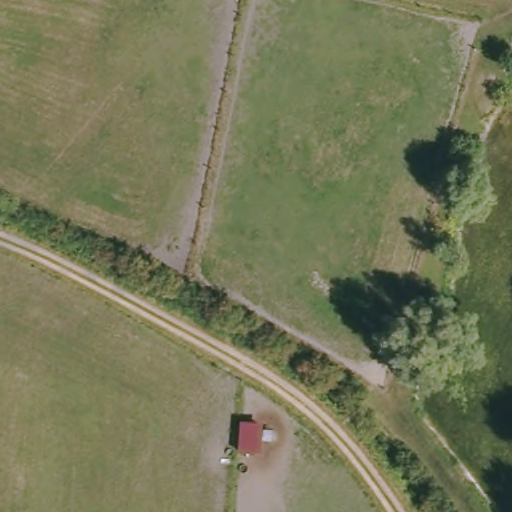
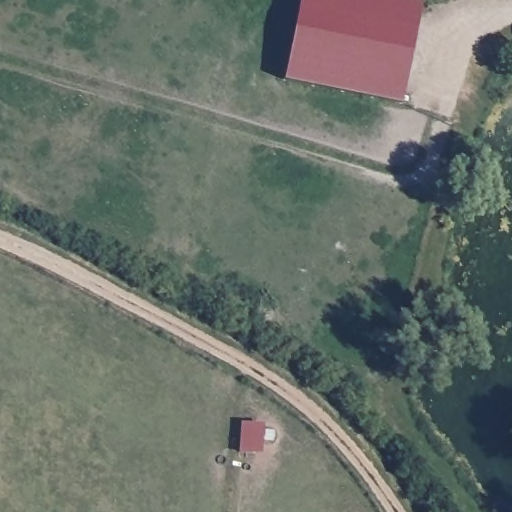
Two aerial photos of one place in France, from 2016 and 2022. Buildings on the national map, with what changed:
new [(284,78),(300,0),(416,0),(422,1),(402,102),(284,78)]
unchanged [(266,421),(264,452),(240,449),(241,420),(266,421)]

